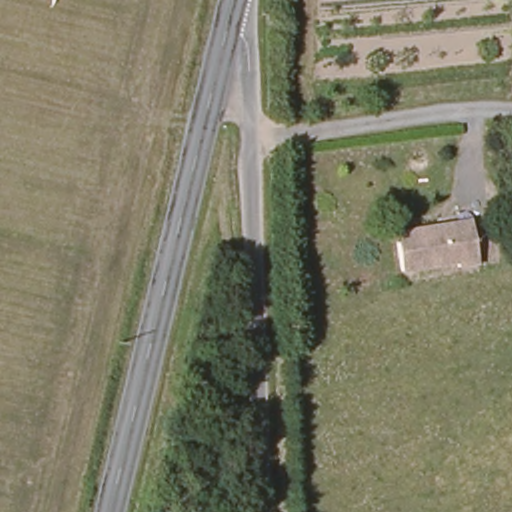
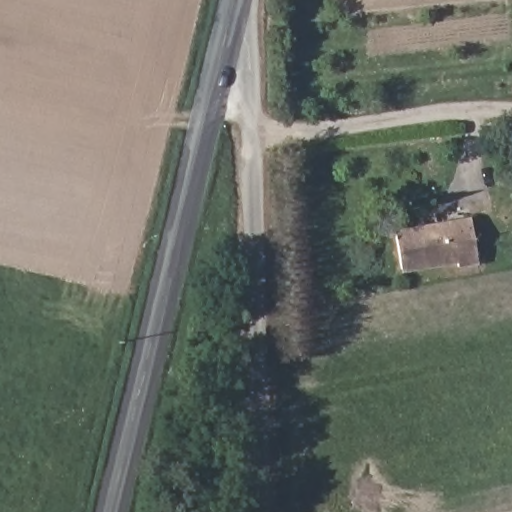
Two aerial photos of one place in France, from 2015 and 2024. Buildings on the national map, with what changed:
unchanged [(477,266),(455,270),(455,263),(400,270),(396,235),(469,223),(477,266)]

